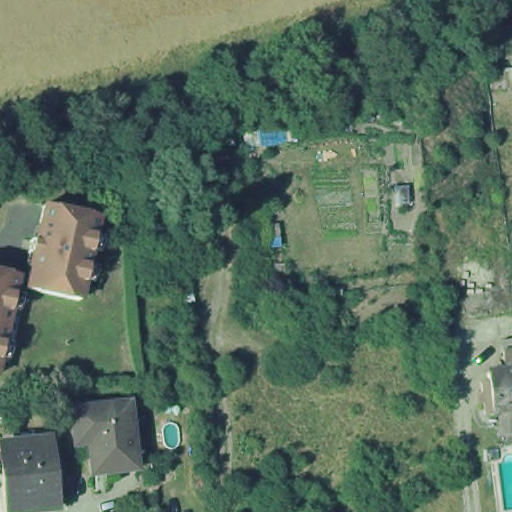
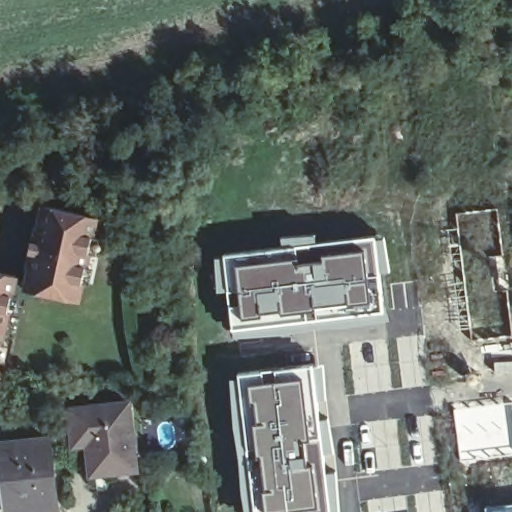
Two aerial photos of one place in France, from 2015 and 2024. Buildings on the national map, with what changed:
unchanged [(182,134),(234,130),(236,150),(206,153),(208,172),(184,172),(182,134)]
unchanged [(99,224),(80,308),(28,297),(35,262),(31,261),(34,247),(38,248),(47,212),(99,224)]
new [(281,244),(280,235),(316,231),(317,240),(384,232),(391,272),(381,273),(387,311),(311,323),(311,326),(231,335),(226,291),(216,292),(213,254),(281,244)]
unchanged [(0,367),(0,276),(18,280),(0,367)]
demolished [(512,313),(512,315),(512,337),(468,345),(464,320),(512,313)]
unchanged [(493,412),(486,414),(486,405),(492,404),(489,373),(507,371),(505,348),(512,349),(511,343),(512,342),(512,412),(493,415),(493,412)]
new [(236,374),(236,371),(324,361),(341,512),(244,512),(233,424),(228,375),(236,374)]
unchanged [(128,401),(137,467),(93,473),(89,442),(75,444),(72,408),(128,401)]
unchanged [(56,511),(47,512),(1,512),(0,505),(0,489),(5,489),(2,448),(49,442),(56,511)]
new [(512,502),(512,512),(485,512),(484,506),(512,502)]

